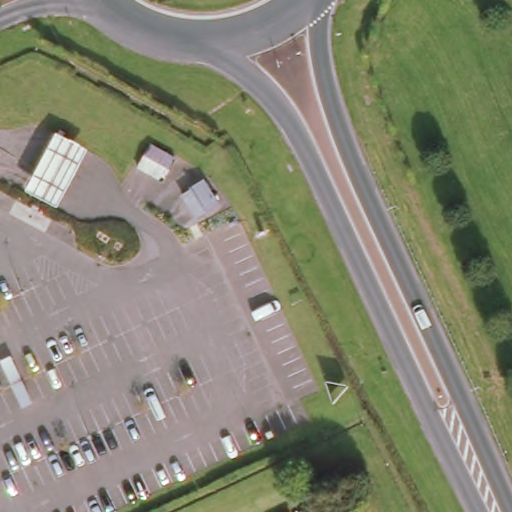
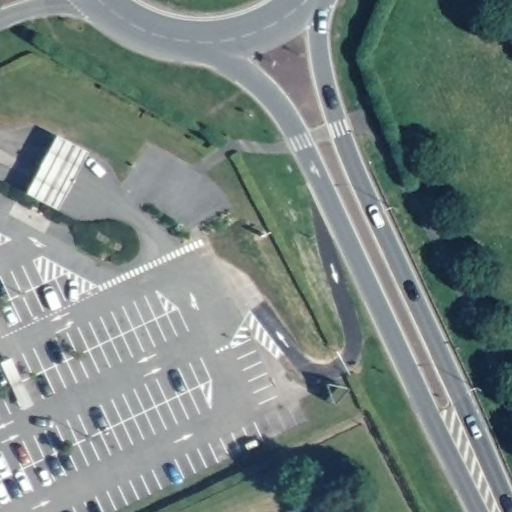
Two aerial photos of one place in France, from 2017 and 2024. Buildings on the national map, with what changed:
unchanged [(88,151),(55,208),(26,194),(52,137),(88,151)]

